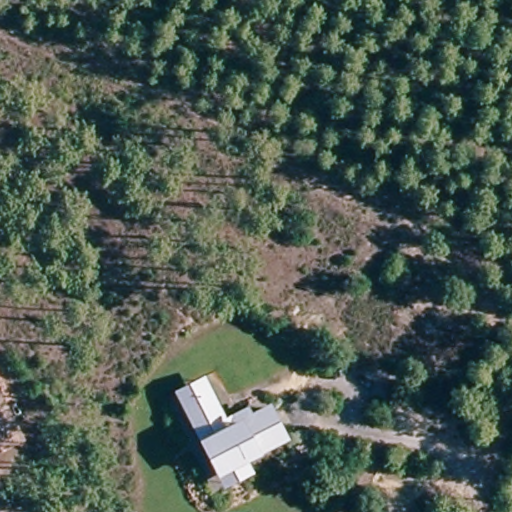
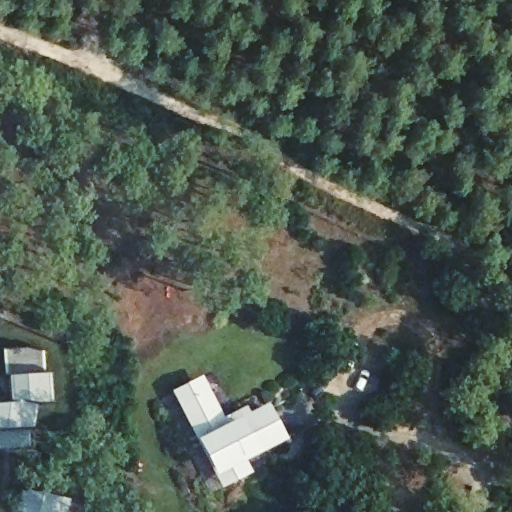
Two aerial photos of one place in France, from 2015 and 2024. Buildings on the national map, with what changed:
new [(6,381),(1,377),(1,354),(25,352),(39,356),(39,377),(48,376),(48,406),(31,407),(31,431),(26,431),(27,450),(0,452),(0,407),(7,407),(6,381)]
unchanged [(217,476),(210,462),(174,397),(168,386),(191,373),(197,384),(213,415),(236,402),(239,409),(258,399),(274,428),(232,451),(239,463),(217,476)]
demolished [(0,433),(0,403),(12,426),(0,433)]
new [(17,509),(21,491),(42,493),(69,500),(67,512),(21,512),(17,509)]

